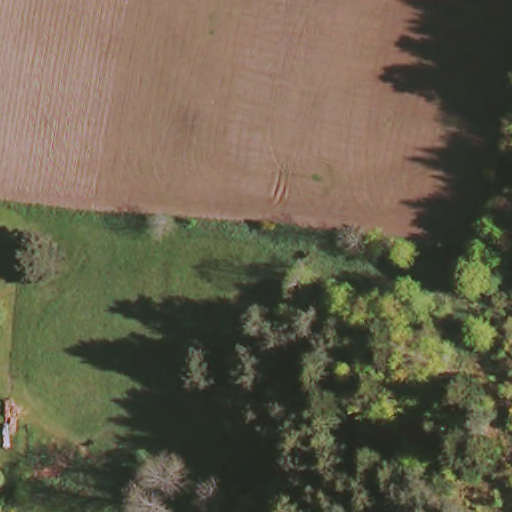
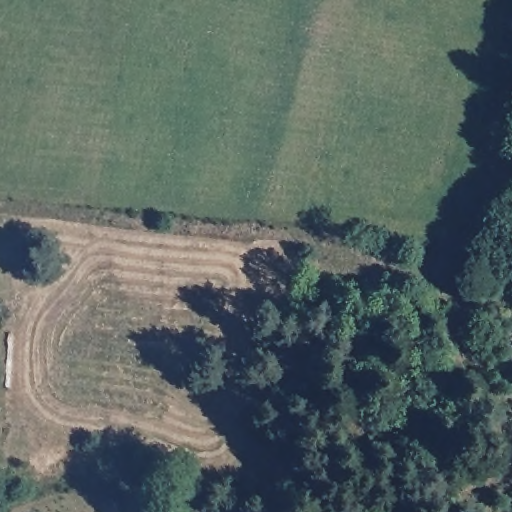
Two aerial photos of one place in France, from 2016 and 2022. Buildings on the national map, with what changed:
[]

